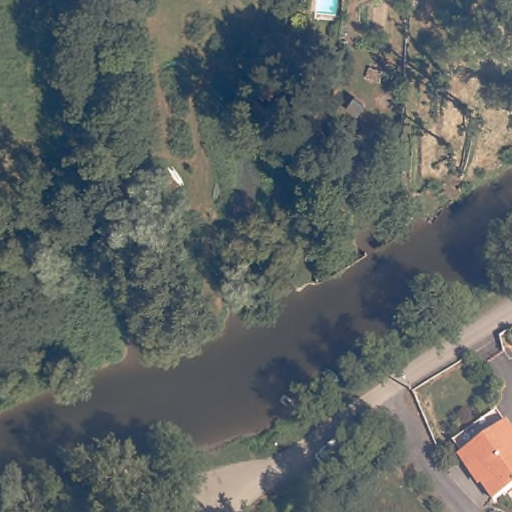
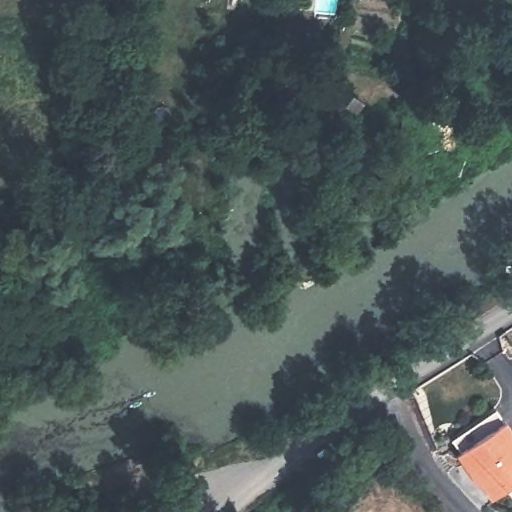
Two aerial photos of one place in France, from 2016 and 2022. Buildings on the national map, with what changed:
unchanged [(499,413),(508,427),(512,431),(512,495),(499,504),(488,488),(485,489),(462,459),(453,446),(499,413)]
unchanged [(161,499),(180,503),(179,512),(160,512),(161,499)]

